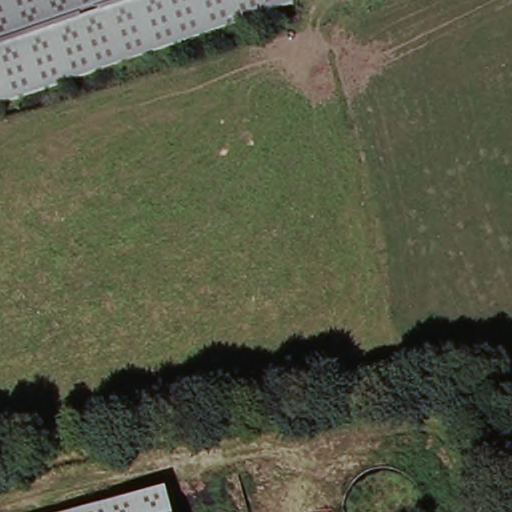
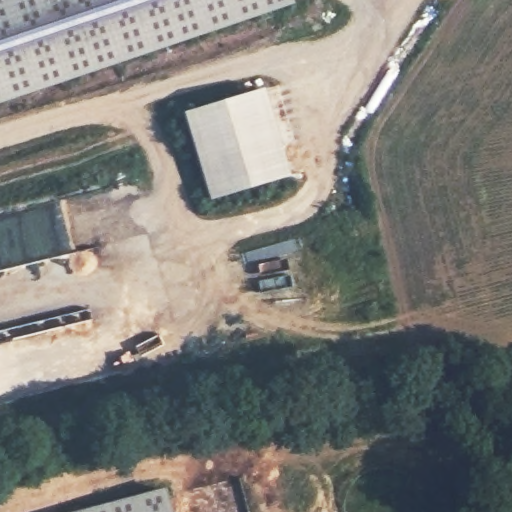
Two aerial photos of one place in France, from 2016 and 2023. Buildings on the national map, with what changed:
unchanged [(293,5),(0,104),(0,0),(291,0),(293,5)]
new [(211,201),(183,114),(267,88),(290,177),(211,201)]
unchanged [(99,512),(160,497),(164,512),(99,512)]

